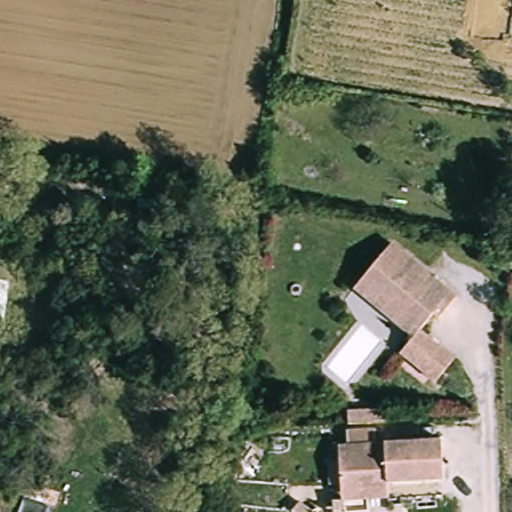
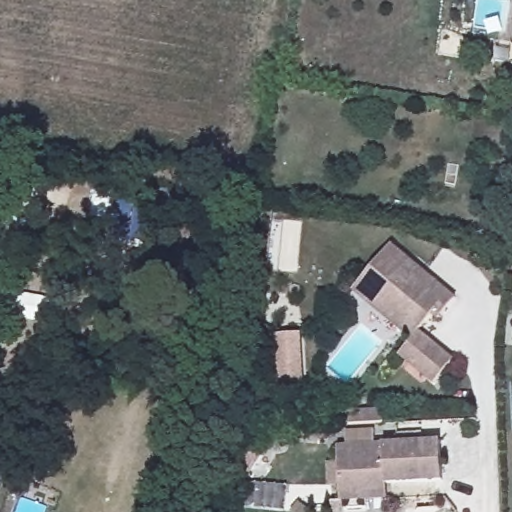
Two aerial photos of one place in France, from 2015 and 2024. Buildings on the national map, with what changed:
unchanged [(449,298),(439,311),(433,318),(427,314),(413,331),(448,360),(428,383),(394,354),(407,338),(385,321),(347,290),(357,278),(385,244),(449,298)]
new [(278,337),(303,337),(306,386),(281,387),(278,337)]
unchanged [(345,414),(384,412),(386,424),(376,425),(346,427),(345,414)]
unchanged [(339,502),(338,487),(336,447),(438,441),(441,481),(384,484),(386,499),(339,502)]

